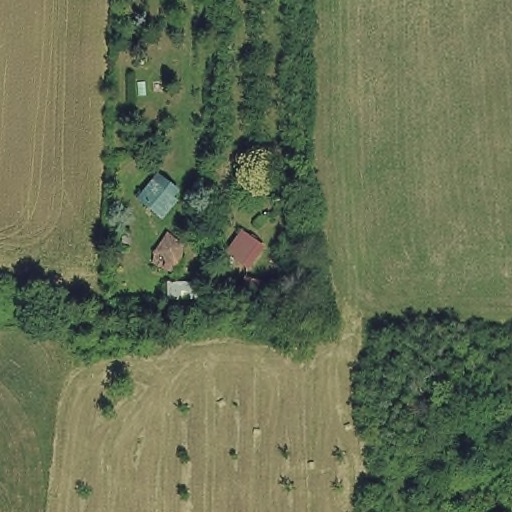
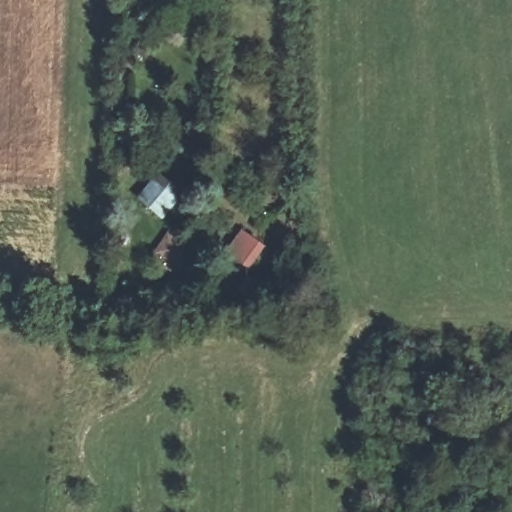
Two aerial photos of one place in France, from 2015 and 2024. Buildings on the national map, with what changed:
unchanged [(157,219),(135,201),(157,173),(180,190),(157,219)]
unchanged [(271,252),(250,282),(223,261),(241,230),(271,252)]

